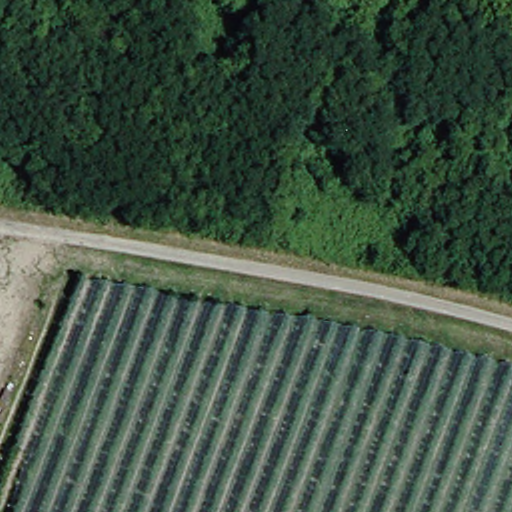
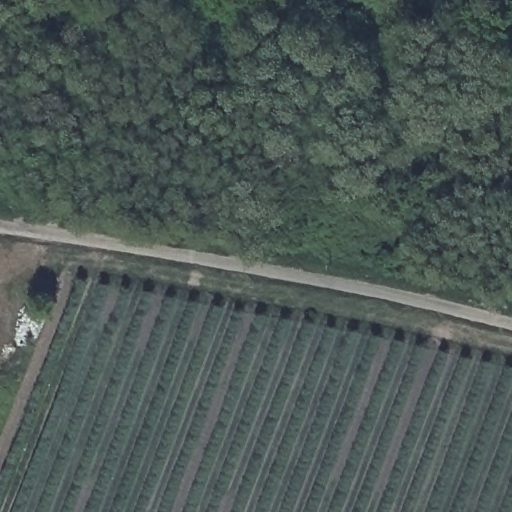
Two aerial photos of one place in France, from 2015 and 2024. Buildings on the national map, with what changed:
[]

